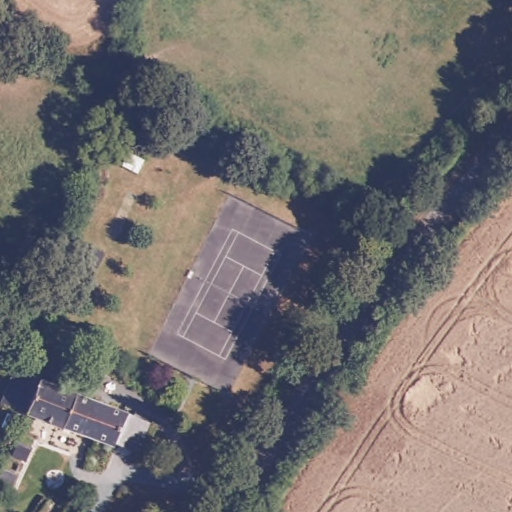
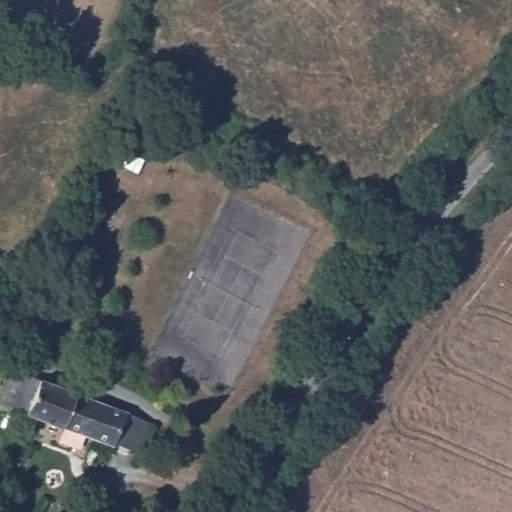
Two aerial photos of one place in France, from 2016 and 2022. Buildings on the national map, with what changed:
unchanged [(24,415),(4,403),(6,396),(16,373),(66,387),(53,419),(24,415)]
unchanged [(93,435),(53,419),(66,387),(108,401),(121,407),(144,417),(133,447),(111,438),(93,435)]
unchanged [(0,463),(5,465),(0,477),(0,463)]

